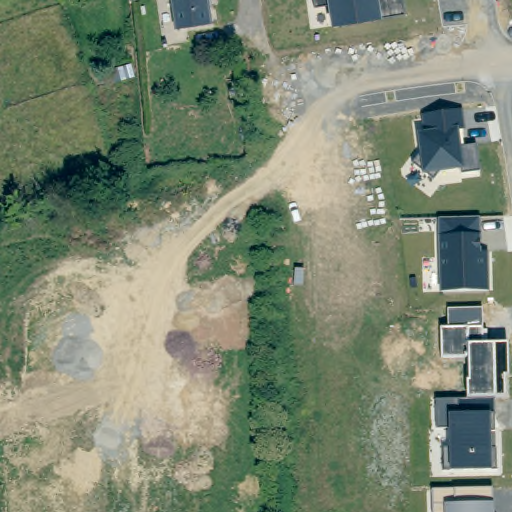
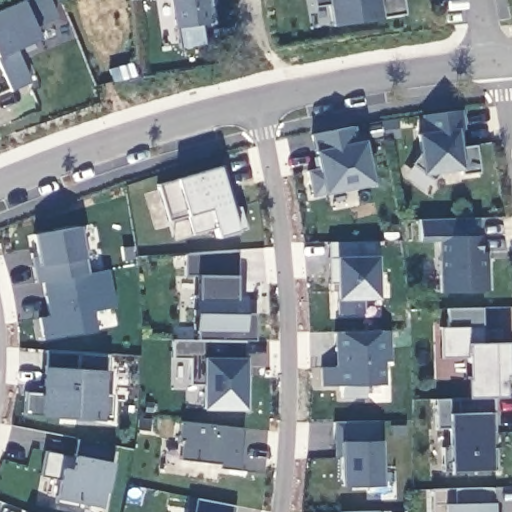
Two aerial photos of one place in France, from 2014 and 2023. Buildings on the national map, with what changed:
unchanged [(177,28),(172,0),(210,0),(214,24),(177,28)]
unchanged [(331,25),(328,5),(315,7),(314,0),(402,0),(405,14),(381,16),(331,25)]
unchanged [(480,172),(462,174),(462,169),(440,173),(434,179),(427,174),(422,174),(421,169),(413,164),(419,154),(418,133),(416,121),(424,120),(423,114),(463,109),(466,129),(463,129),(465,146),(475,145),(480,172)]
new [(320,173),(313,138),(335,134),(354,130),(358,147),(364,145),(373,188),(314,199),(309,175),(320,173)]
new [(228,167),(235,189),(230,190),(236,210),(244,208),(251,230),(221,239),(219,230),(197,237),(191,218),(173,223),(162,187),(228,167)]
unchanged [(480,218),(480,253),(489,253),(490,291),(442,293),(439,219),(480,218)]
new [(38,319),(47,317),(41,282),(35,282),(38,265),(32,235),(78,227),(84,258),(85,274),(108,270),(115,307),(92,310),(98,330),(44,339),(38,319)]
new [(337,284),(335,285),(333,243),(381,242),(383,299),(367,299),(368,314),(343,314),(343,292),(338,292),(337,284)]
new [(190,255),(243,252),(243,279),(240,279),(240,298),(249,299),(248,315),(260,315),(260,343),(249,343),(202,342),(202,331),(199,331),(199,297),(202,297),(202,278),(190,278),(190,255)]
unchanged [(483,343),(507,343),(508,376),(504,376),(504,397),(497,397),(496,469),(491,469),(449,471),(448,429),(438,429),(438,400),(466,399),(466,381),(468,380),(469,358),(441,358),(441,329),(448,328),(447,309),(482,309),(483,343)]
new [(202,342),(249,343),(249,378),(253,378),(252,411),(207,410),(207,387),(193,387),(194,361),(176,360),(176,353),(177,341),(202,342)]
new [(28,393),(43,394),(44,366),(46,352),(106,356),(103,370),(101,421),(73,419),(39,416),(23,414),(28,393)]
new [(387,486),(347,487),(346,457),(340,457),(340,444),(339,423),(385,422),(387,486)]
new [(185,423),(248,429),(243,473),(223,470),(223,466),(184,462),(186,443),(183,442),(185,423)]
new [(66,458),(75,459),(78,442),(115,449),(106,493),(103,493),(100,509),(78,504),(76,510),(55,506),(60,483),(41,479),(46,454),(66,458)]
unchanged [(433,489),(492,489),(492,503),(492,512),(432,512),(433,489)]
new [(201,501),(240,509),(239,512),(199,512),(201,501)]

